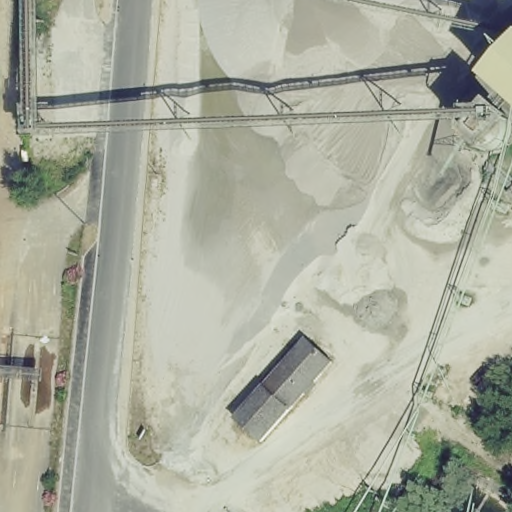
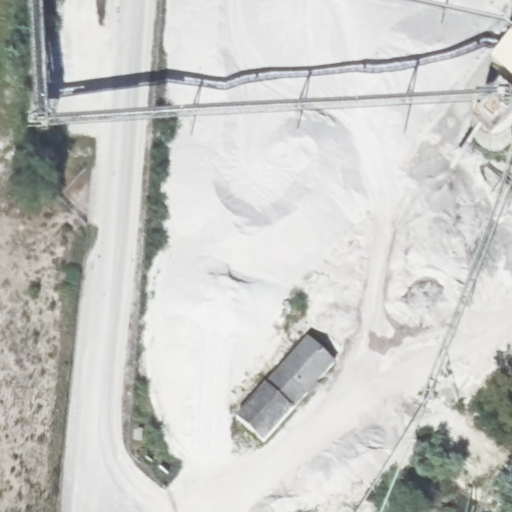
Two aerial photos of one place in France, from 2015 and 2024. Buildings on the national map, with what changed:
unchanged [(490,79),(512,56),(512,98),(490,79)]
unchanged [(334,363),(263,443),(235,419),(308,339),(334,363)]

